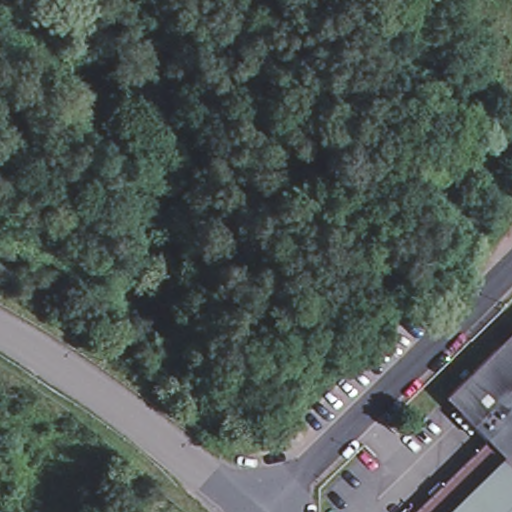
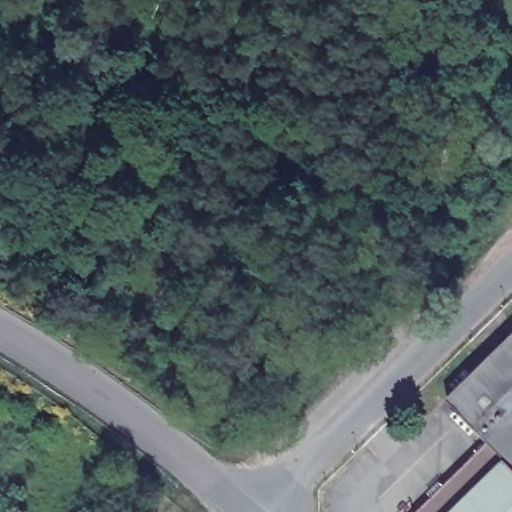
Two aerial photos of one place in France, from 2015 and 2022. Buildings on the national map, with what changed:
unchanged [(512,325),(512,455),(489,431),(448,388),(512,325)]
unchanged [(512,455),(512,512),(407,512),(489,431),(512,455)]

